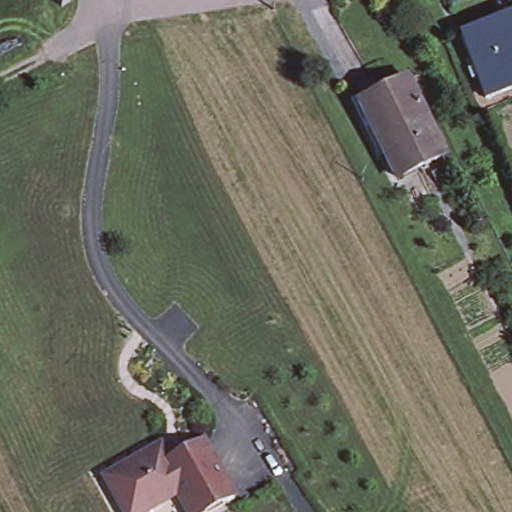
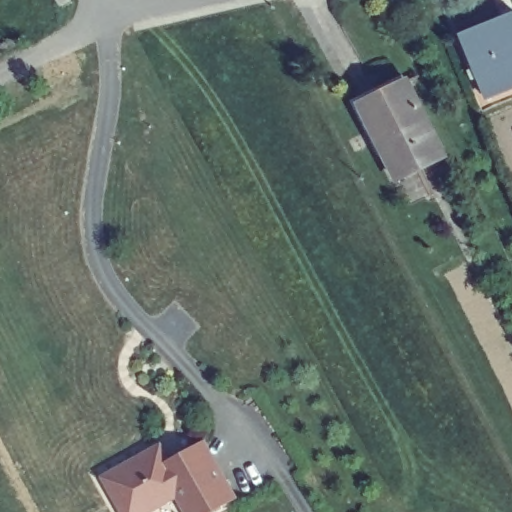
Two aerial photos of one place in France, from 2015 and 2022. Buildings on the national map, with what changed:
unchanged [(460,33),(512,12),(512,85),(486,96),(460,33)]
unchanged [(394,175),(359,102),(393,85),(405,80),(440,152),(431,157),(394,175)]
unchanged [(203,492),(185,458),(188,457),(186,452),(208,442),(238,496),(213,510),(203,492)]
unchanged [(146,455),(165,445),(174,464),(185,458),(203,492),(213,510),(208,512),(192,512),(181,492),(170,499),(146,455)]
unchanged [(146,512),(129,512),(108,475),(146,455),(170,499),(146,512)]

